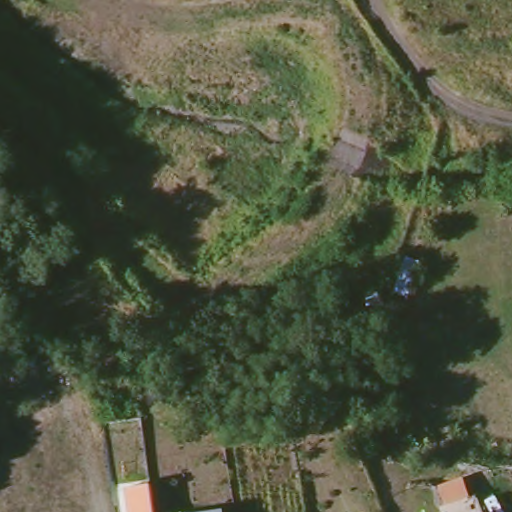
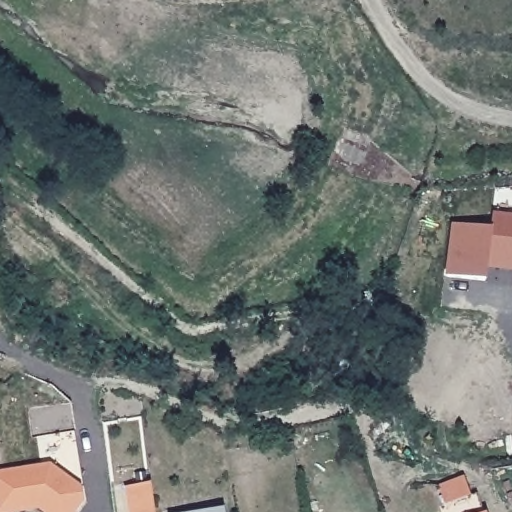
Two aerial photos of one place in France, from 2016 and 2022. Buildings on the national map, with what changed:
new [(485,280),(445,274),(451,225),(490,230),(493,214),(512,217),(512,274),(485,269),(485,280)]
demolished [(403,250),(422,256),(410,299),(390,294),(403,250)]
new [(83,495),(86,505),(80,512),(40,512),(40,509),(32,510),(33,512),(0,512),(0,478),(51,470),(83,495)]
unchanged [(150,484),(154,512),(129,512),(125,489),(150,484)]
unchanged [(486,512),(444,512),(481,498),(486,512)]
unchanged [(219,512),(176,512),(218,506),(219,512)]

